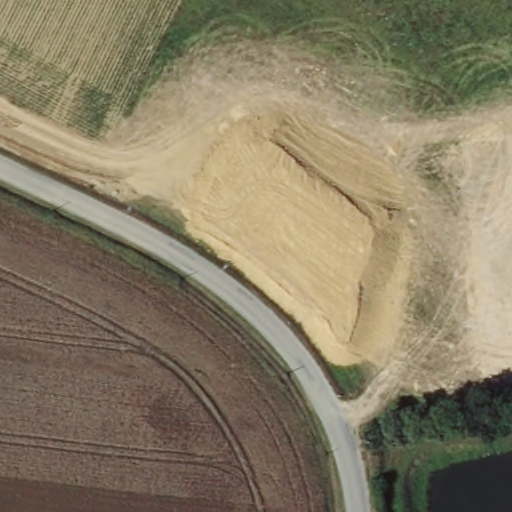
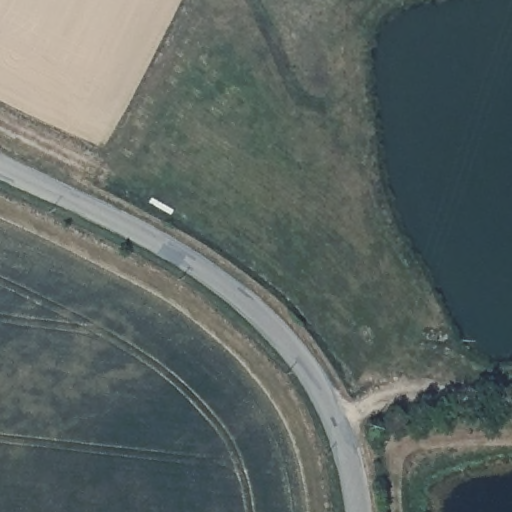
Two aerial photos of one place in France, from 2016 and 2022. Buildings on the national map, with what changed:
[]

